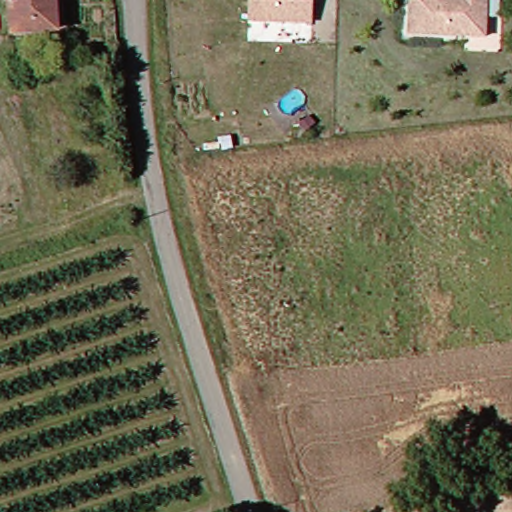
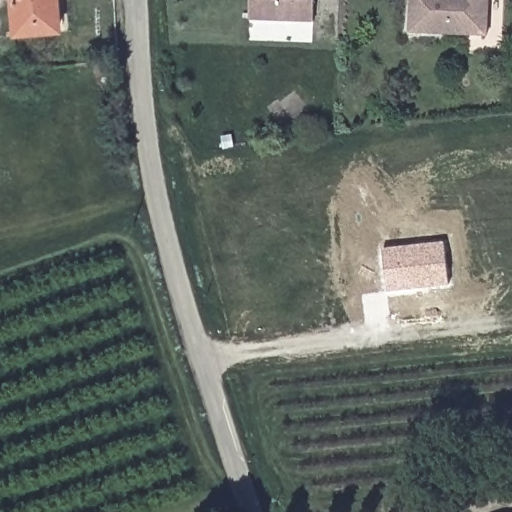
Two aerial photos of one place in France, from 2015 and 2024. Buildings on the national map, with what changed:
unchanged [(60,28),(15,30),(13,0),(58,0),(60,28)]
unchanged [(315,17),(251,15),(251,0),(315,0),(315,17)]
unchanged [(489,32),(412,29),(413,0),(490,0),(489,32)]
new [(449,286),(388,294),(383,249),(444,242),(449,286)]

